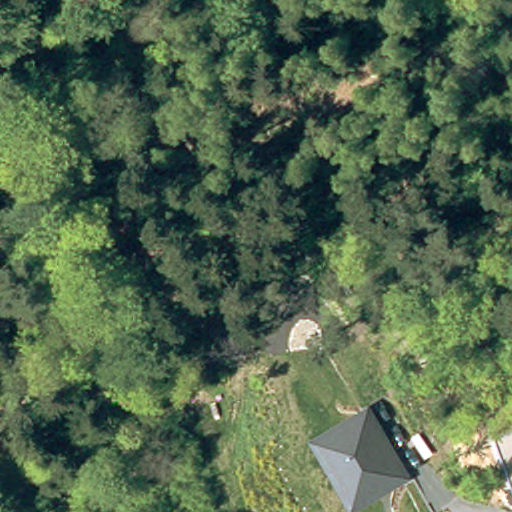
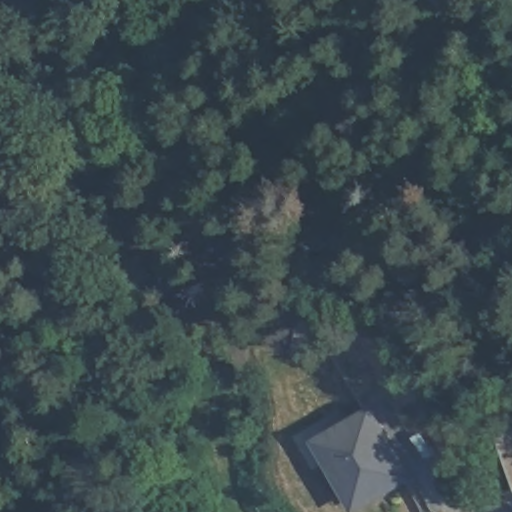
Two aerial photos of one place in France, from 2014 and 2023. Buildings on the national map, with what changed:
unchanged [(412,477),(352,511),(310,438),(370,405),(412,477)]
unchanged [(512,433),(512,482),(496,437),(512,433)]

